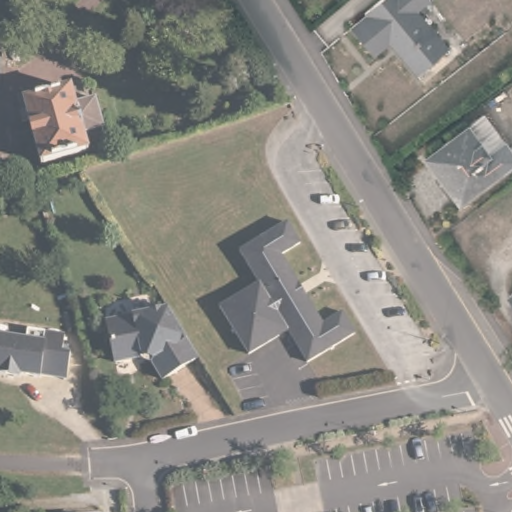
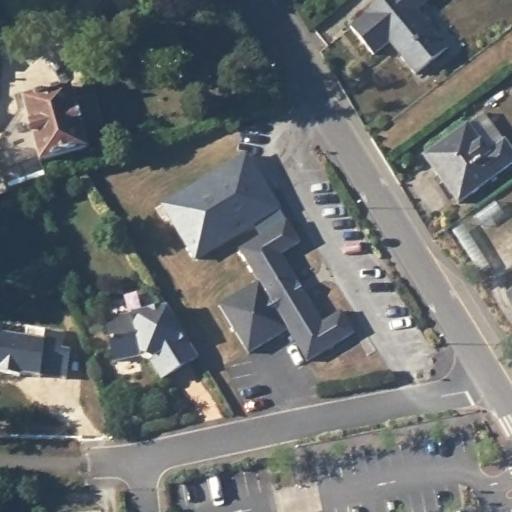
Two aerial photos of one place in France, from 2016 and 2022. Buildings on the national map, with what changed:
unchanged [(452,49),(420,76),(406,59),(405,50),(401,44),(394,44),(377,57),(355,29),(372,15),(369,12),(383,0),(433,0),(434,0),(420,10),(452,49)]
unchanged [(64,92),(69,108),(89,104),(96,132),(78,137),(82,155),(35,167),(18,105),(64,92)]
unchanged [(481,120),(494,137),(512,162),(512,167),(454,210),(434,182),(420,161),(481,120)]
new [(247,154),(280,210),(195,262),(160,206),(247,154)]
unchanged [(298,241),(279,254),(319,321),(340,309),(352,331),(303,360),(283,327),(244,350),(218,307),(257,283),(238,251),(287,221),(298,241)]
unchanged [(501,298),(512,290),(512,312),(501,298)]
unchanged [(197,360),(161,381),(151,365),(153,361),(141,355),(140,359),(115,364),(106,323),(168,310),(197,360)]
unchanged [(71,353),(68,380),(43,378),(41,380),(22,378),(21,380),(0,379),(0,339),(26,341),(28,332),(65,335),(63,353),(71,353)]

